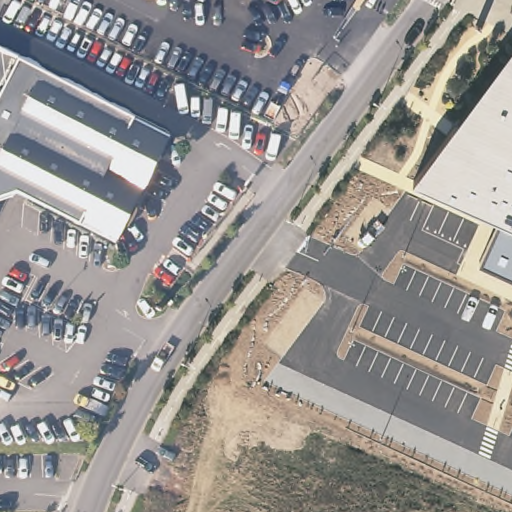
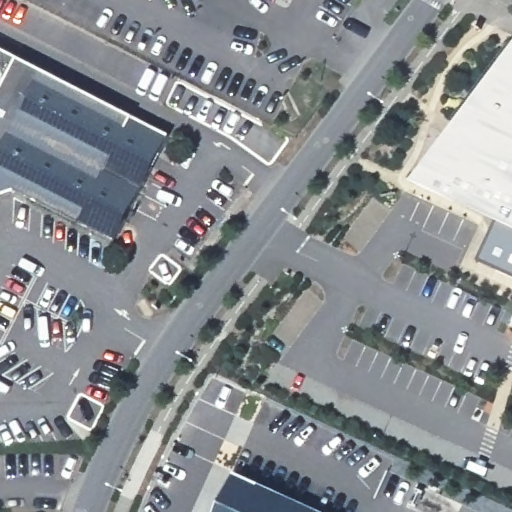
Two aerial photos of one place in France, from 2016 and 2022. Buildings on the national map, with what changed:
unchanged [(276,1),(273,0),(276,0),(276,1)]
unchanged [(118,243),(22,194),(0,202),(0,45),(172,134),(118,243)]
unchanged [(512,49),(512,274),(485,261),(501,220),(414,181),(415,180),(512,49)]
new [(321,512),(215,512),(234,471),(321,512)]

